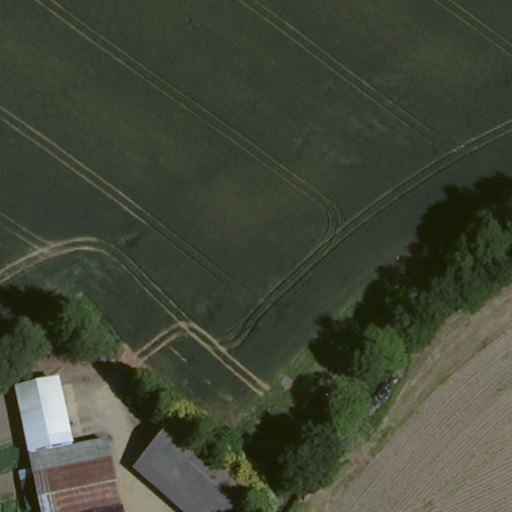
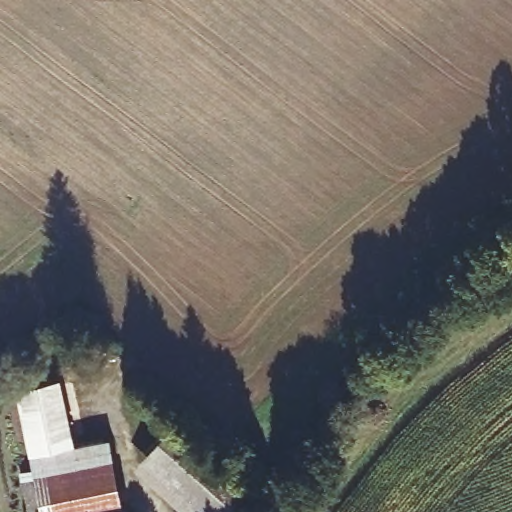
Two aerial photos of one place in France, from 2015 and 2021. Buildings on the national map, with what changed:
unchanged [(16,389),(63,376),(79,450),(29,463),(16,389)]
unchanged [(244,505),(238,512),(189,512),(138,469),(165,438),(197,467),(244,505)]
unchanged [(39,512),(39,510),(28,512),(25,512),(18,476),(31,472),(29,463),(79,450),(105,443),(120,512),(39,512)]

